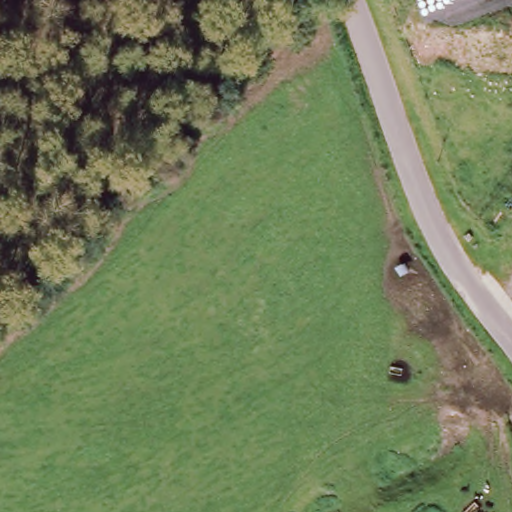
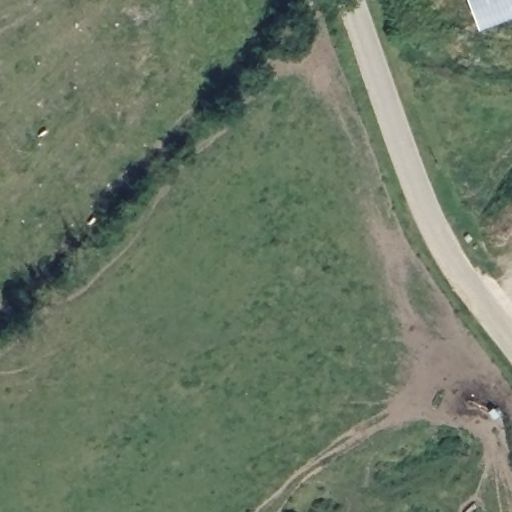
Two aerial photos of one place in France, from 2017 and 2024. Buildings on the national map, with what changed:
new [(482,22),(473,0),(512,0),(512,11),(482,22)]

